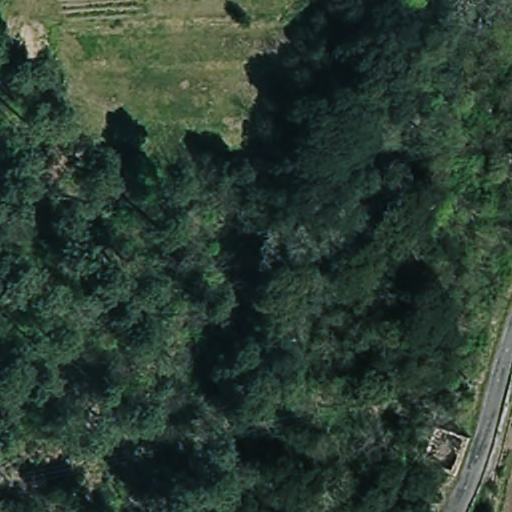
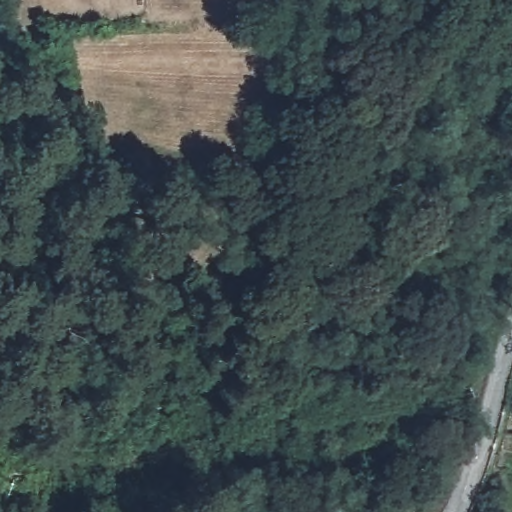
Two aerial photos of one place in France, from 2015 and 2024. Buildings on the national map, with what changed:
unchanged [(440,467),(450,434),(472,440),(458,474),(440,467)]

